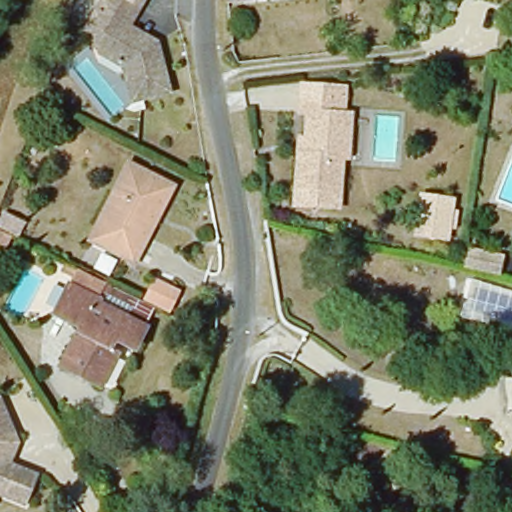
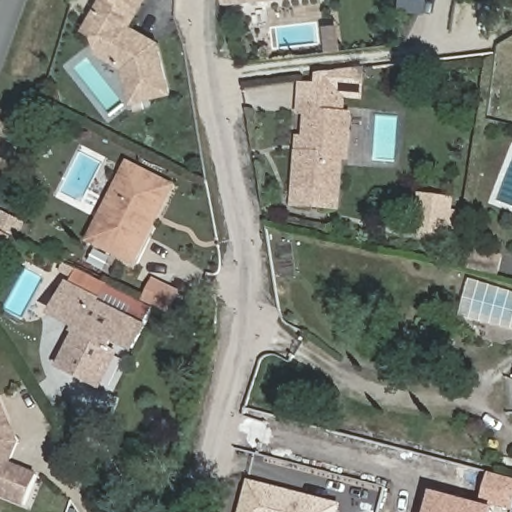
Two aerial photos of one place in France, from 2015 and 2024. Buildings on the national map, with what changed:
unchanged [(168,60),(176,98),(136,103),(131,69),(110,54),(104,36),(92,30),(101,12),(107,0),(150,0),(136,27),(168,47),(168,60)]
unchanged [(231,2),(231,0),(249,0),(231,2)]
unchanged [(309,115),(301,115),(303,88),(346,91),(344,116),(349,116),(346,159),(342,158),(339,191),(337,211),(298,208),(299,188),(302,155),(306,156),(309,115)]
unchanged [(98,224),(127,165),(168,187),(132,259),(103,245),(91,240),(98,224)]
unchanged [(449,243),(410,236),(417,193),(456,198),(449,243)]
unchanged [(4,243),(0,241),(0,230),(9,234),(4,243)]
unchanged [(467,245),(503,253),(499,270),(463,262),(467,245)]
unchanged [(72,290),(101,304),(100,307),(150,333),(139,354),(117,343),(112,353),(121,358),(104,391),(64,370),(84,332),(58,319),(72,290)]
unchanged [(14,435),(17,442),(8,463),(37,474),(25,504),(0,494),(0,402),(9,423),(14,435)]
new [(497,509),(497,512),(428,512),(433,493),(479,504),(488,472),(507,477),(512,479),(512,512),(497,509)]
new [(341,504),(339,512),(239,512),(247,480),(341,504)]

